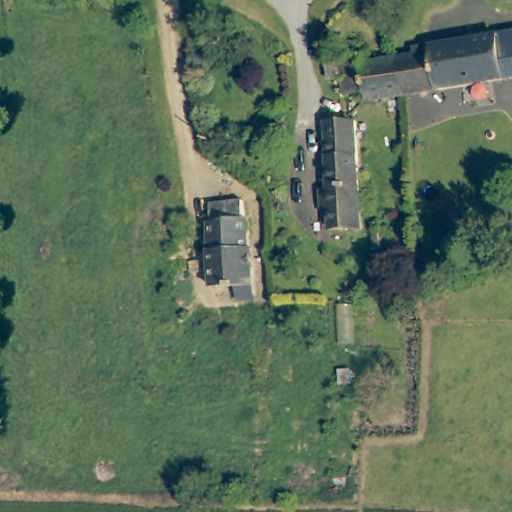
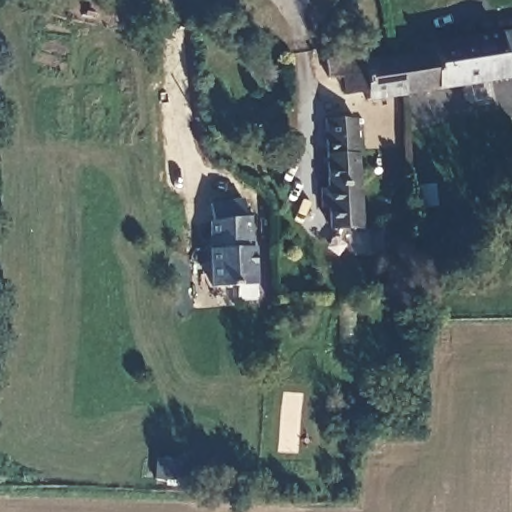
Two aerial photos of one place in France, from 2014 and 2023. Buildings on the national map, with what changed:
unchanged [(512,82),(504,84),(498,37),(512,35),(512,82)]
unchanged [(504,84),(436,95),(430,47),(498,37),(504,84)]
unchanged [(398,61),(414,58),(413,50),(430,47),(436,95),(405,100),(398,61)]
unchanged [(367,105),(366,99),(360,67),(398,61),(405,100),(367,105)]
unchanged [(361,228),(328,229),(323,122),(356,120),(361,228)]
unchanged [(212,274),(207,211),(247,209),(249,239),(252,239),(255,285),(235,285),(213,286),(212,274)]
unchanged [(388,226),(389,252),(374,252),(373,227),(388,226)]

